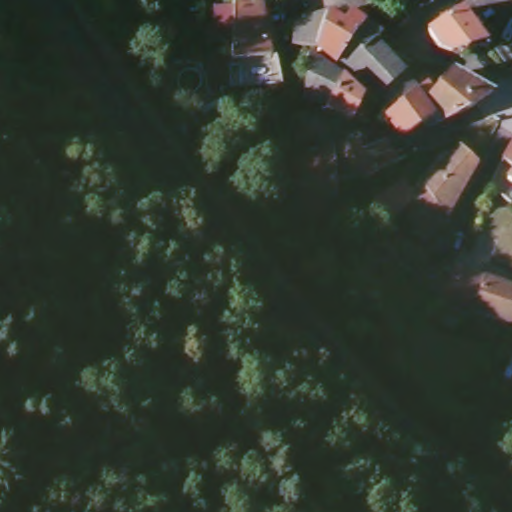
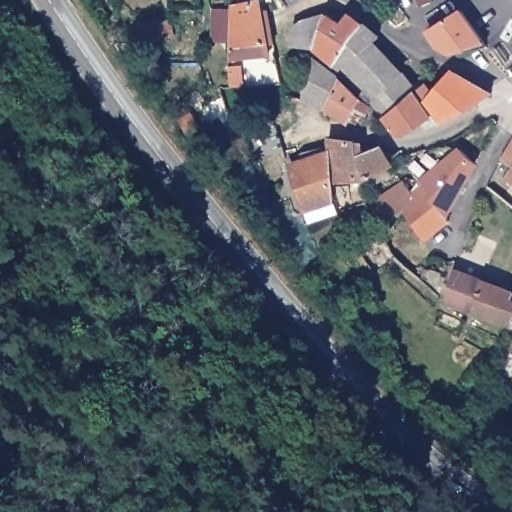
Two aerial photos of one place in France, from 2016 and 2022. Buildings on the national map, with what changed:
unchanged [(0,0),(8,0),(11,6),(0,13),(0,0)]
unchanged [(231,2),(238,0),(258,0),(267,43),(232,48),(231,2)]
unchanged [(419,0),(432,0),(421,4),(419,0)]
unchanged [(287,38),(287,23),(297,14),(318,5),(337,17),(345,8),(360,17),(332,54),(313,40),(287,38)]
unchanged [(470,48),(455,54),(441,50),(431,33),(463,12),(485,43),(470,48)]
unchanged [(142,44),(140,24),(176,16),(178,40),(142,44)]
unchanged [(368,94),(331,56),(332,54),(360,17),(375,29),(370,36),(397,65),(406,77),(415,69),(422,77),(413,85),(421,94),(431,110),(410,125),(400,128),(382,109),(368,94)]
unchanged [(279,74),(278,71),(302,69),(305,49),(311,49),(338,71),(359,90),(349,115),(323,101),(324,99),(300,95),(283,93),(279,74)]
unchanged [(449,64),(487,84),(471,95),(436,117),(431,110),(421,94),(449,64)]
unchanged [(400,167),(332,185),(332,204),(295,214),(284,157),(323,147),(325,130),(355,132),(361,146),(386,136),(400,167)]
unchanged [(401,255),(383,232),(387,229),(386,224),(376,197),(408,175),(417,190),(425,178),(423,175),(468,145),(481,160),(450,213),(455,219),(430,240),(411,217),(396,227),(410,247),(401,255)]
unchanged [(506,161),(512,151),(512,165),(506,161)]
unchanged [(510,179),(512,177),(512,181),(510,179)]
unchanged [(452,304),(460,274),(512,292),(512,327),(452,304)]
unchanged [(504,381),(512,365),(512,384),(504,381)]

